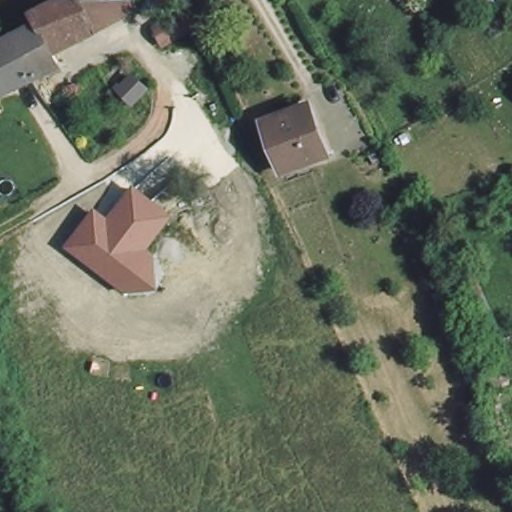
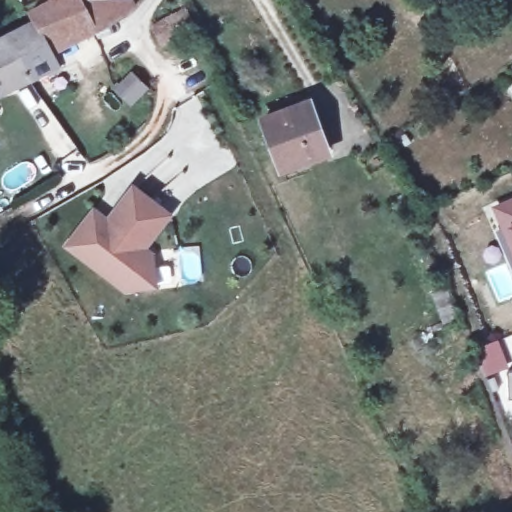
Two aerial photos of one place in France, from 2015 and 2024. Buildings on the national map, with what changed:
unchanged [(21,26),(45,14),(39,4),(48,0),(141,0),(55,34),(65,53),(42,65),(0,87),(0,38),(21,26)]
unchanged [(157,26),(189,8),(197,26),(164,42),(157,26)]
unchanged [(131,101),(115,83),(119,79),(123,82),(132,73),(145,89),(131,101)]
unchanged [(262,120),(305,102),(327,150),(284,167),(262,120)]
unchanged [(95,207),(107,217),(132,184),(172,215),(150,250),(157,255),(159,287),(125,293),(64,249),(95,207)]
new [(512,255),(491,207),(512,197),(512,255)]
new [(505,369),(512,369),(512,397),(507,397),(505,369)]

